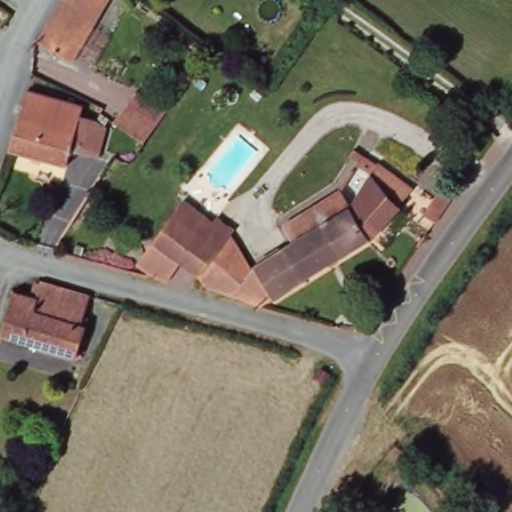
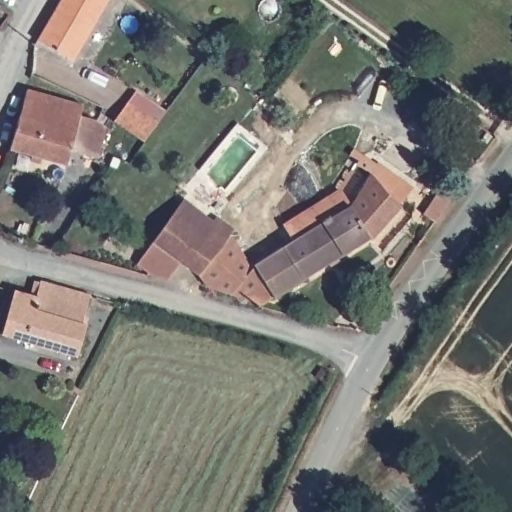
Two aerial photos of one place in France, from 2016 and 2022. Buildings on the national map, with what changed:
unchanged [(93,30),(76,61),(41,41),(63,0),(110,0),(93,30)]
unchanged [(101,159),(74,155),(73,160),(16,144),(33,85),(88,101),(83,120),(107,125),(101,159)]
unchanged [(123,104),(126,97),(162,120),(153,133),(118,111),(123,104)]
unchanged [(342,190),(359,161),(352,158),(356,150),(383,162),(352,200),(324,219),(307,230),(294,238),(286,225),(342,190)]
unchanged [(383,162),(418,186),(379,234),(349,253),(324,219),(352,200),(383,162)]
unchanged [(455,190),(438,215),(425,205),(442,181),(455,190)]
unchanged [(161,218),(171,224),(191,192),(237,230),(203,276),(186,264),(173,281),(140,265),(155,242),(145,234),(161,218)]
unchanged [(294,238),(307,230),(324,219),(349,253),(309,278),(284,245),(294,238)]
unchanged [(249,239),(241,249),(246,253),(258,261),(253,265),(280,296),(264,306),(259,305),(246,295),(242,301),(213,294),(203,276),(237,230),(249,239)]
unchanged [(258,261),(284,245),(309,278),(280,296),(253,265),(258,261)]
unchanged [(39,299),(44,283),(94,297),(89,315),(93,316),(81,358),(4,336),(16,293),(39,299)]

